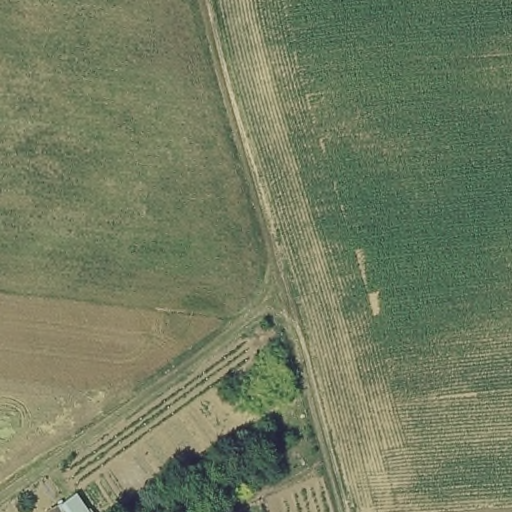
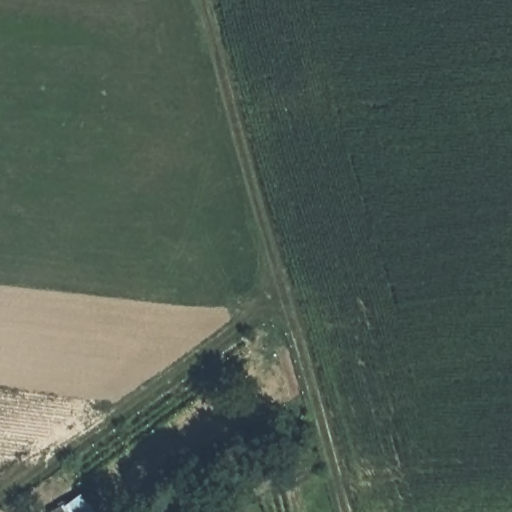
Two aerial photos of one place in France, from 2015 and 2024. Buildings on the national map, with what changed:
unchanged [(93,512),(57,512),(79,495),(93,512)]

